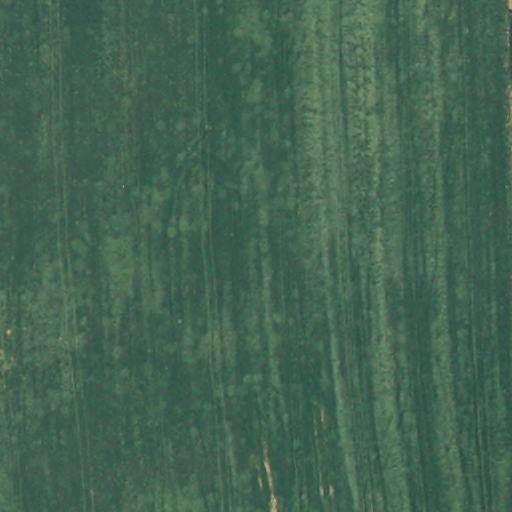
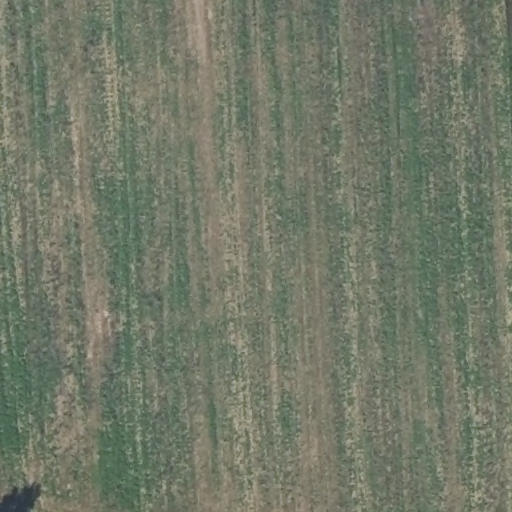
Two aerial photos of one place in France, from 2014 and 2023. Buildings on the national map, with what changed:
[]

